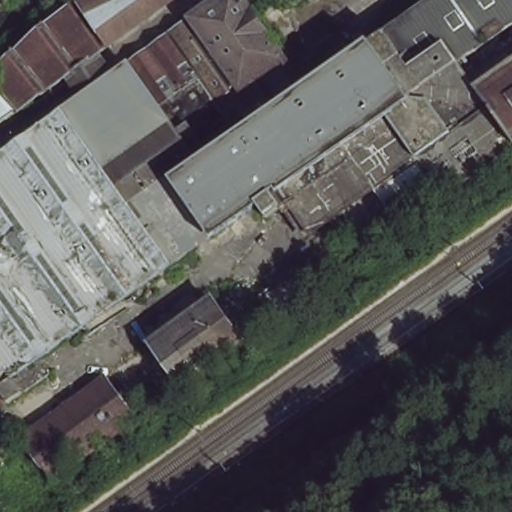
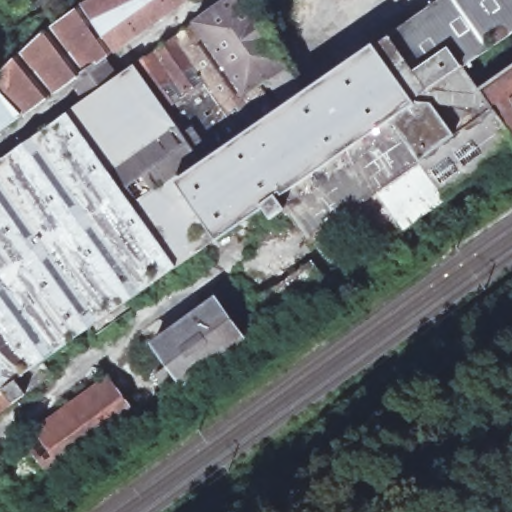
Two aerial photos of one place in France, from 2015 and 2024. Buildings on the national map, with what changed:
unchanged [(33,45),(78,11),(101,0),(188,0),(98,64),(63,88),(0,132),(0,77),(33,45)]
unchanged [(78,108),(113,84),(231,0),(235,0),(296,86),(303,96),(304,99),(201,170),(181,185),(174,189),(178,196),(211,243),(209,245),(119,309),(81,335),(38,366),(48,380),(23,398),(13,384),(10,386),(20,400),(6,410),(0,402),(0,163),(78,108)]
unchanged [(473,96),(512,68),(512,153),(440,204),(418,173),(414,166),(339,220),(308,242),(289,215),(282,220),(279,215),(264,226),(258,215),(256,212),(235,227),(211,243),(178,196),(174,189),(181,185),(201,170),(304,99),(446,0),(512,0),(512,34),(456,74),(473,96)]
unchanged [(78,108),(63,88),(98,64),(113,84),(78,108)]
unchanged [(398,235),(366,258),(339,220),(414,166),(418,173),(440,204),(398,235)]
unchanged [(311,262),(327,285),(277,320),(261,299),(311,262)]
unchanged [(183,390),(186,394),(172,404),(154,380),(168,370),(153,350),(214,305),(244,346),(183,390)]
unchanged [(103,383),(132,424),(48,485),(18,444),(103,383)]
unchanged [(0,414),(0,402),(6,410),(0,414)]

